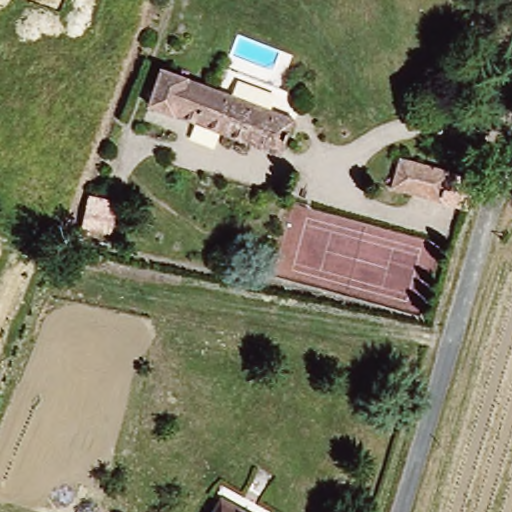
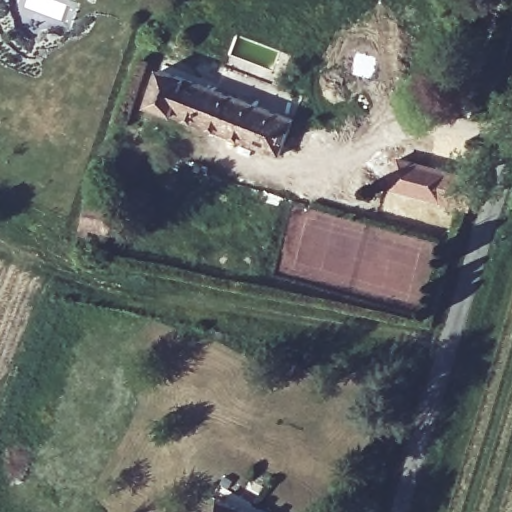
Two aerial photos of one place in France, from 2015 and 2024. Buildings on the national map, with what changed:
unchanged [(280,157),(150,106),(164,70),(295,121),(280,157)]
unchanged [(450,170),(441,200),(391,188),(403,159),(450,170)]
unchanged [(248,512),(220,512),(230,499),(248,512)]

